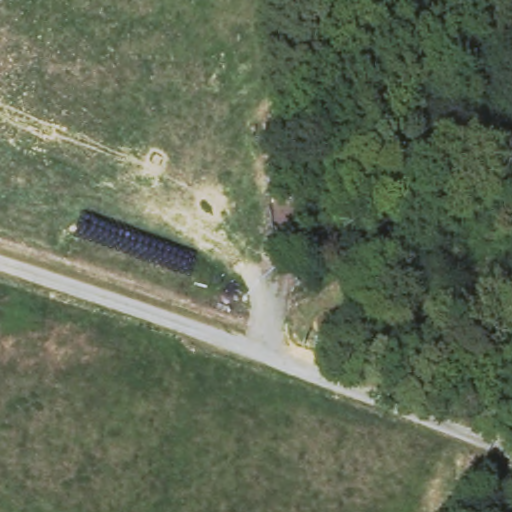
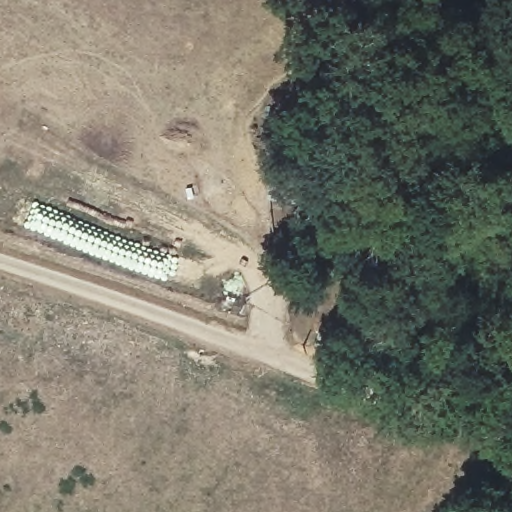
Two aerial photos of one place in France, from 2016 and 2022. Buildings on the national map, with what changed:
unchanged [(268,200),(272,158),(300,160),(297,208),(268,200)]

